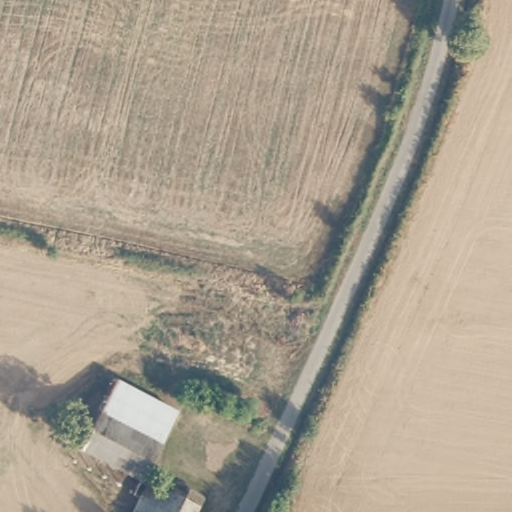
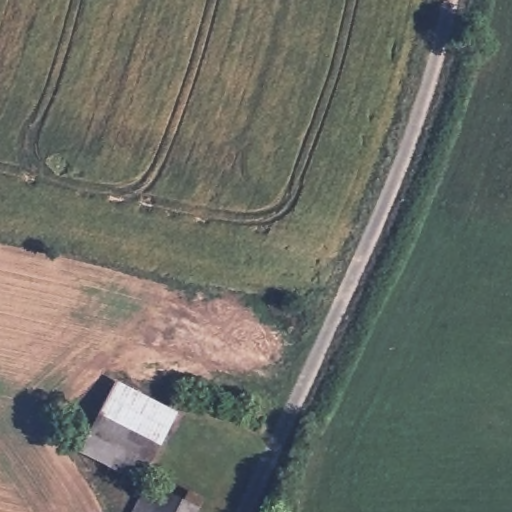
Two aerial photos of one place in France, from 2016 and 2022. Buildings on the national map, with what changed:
unchanged [(179,410),(145,477),(109,458),(86,446),(119,380),(140,391),(179,410)]
unchanged [(203,506),(200,512),(134,512),(154,479),(203,506)]

